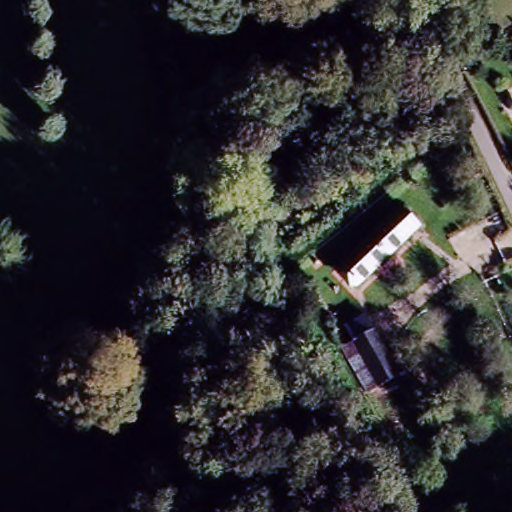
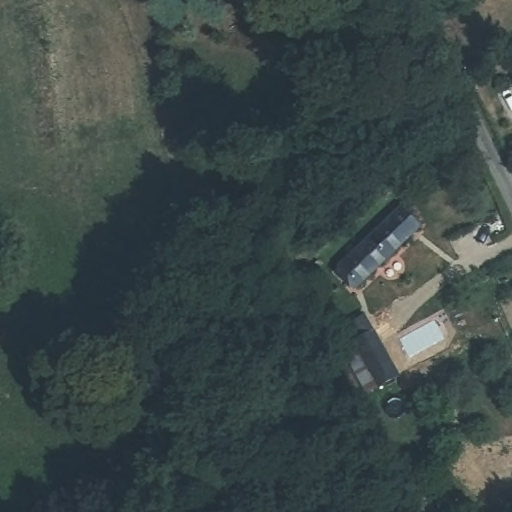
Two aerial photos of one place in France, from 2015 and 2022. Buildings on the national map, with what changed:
unchanged [(362,290),(362,298),(343,300),(332,279),(398,212),(419,228),(362,290)]
unchanged [(372,339),(398,388),(377,399),(351,350),(372,339)]

